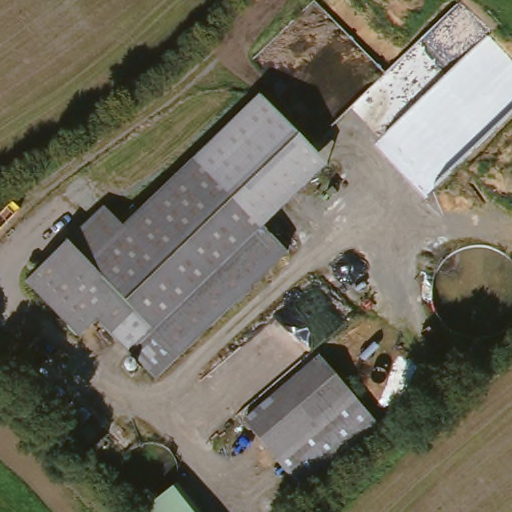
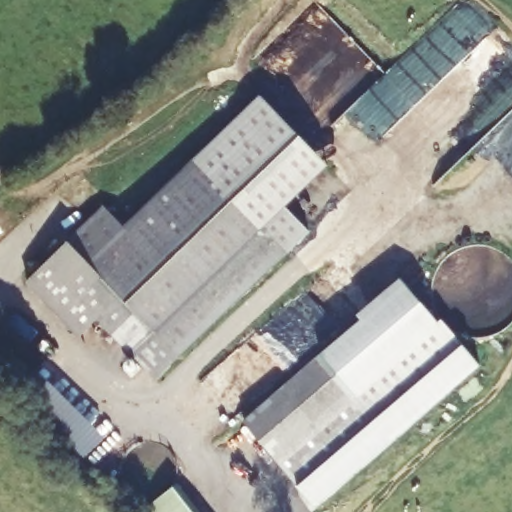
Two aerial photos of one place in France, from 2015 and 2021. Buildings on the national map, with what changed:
unchanged [(264,92),(338,161),(270,229),(196,155),(264,92)]
unchanged [(153,375),(99,325),(82,344),(17,279),(101,202),(124,225),(196,155),(270,229),(290,249),(153,375)]
new [(381,422),(324,357),(362,322),(358,316),(402,280),(439,326),(442,322),(463,347),(481,366),(317,507),(304,490),(381,422)]
unchanged [(248,424),(324,357),(381,422),(304,490),(248,424)]
unchanged [(174,487),(196,512),(146,512),(146,511),(174,487)]

